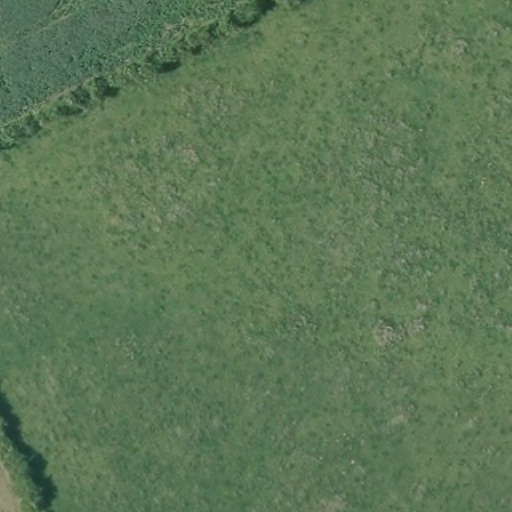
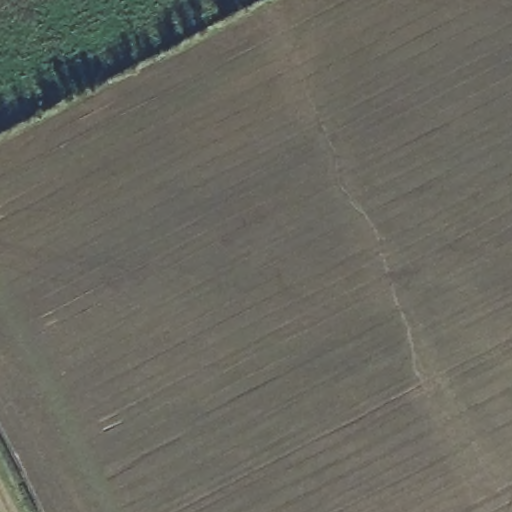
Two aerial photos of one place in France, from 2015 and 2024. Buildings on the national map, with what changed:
[]

